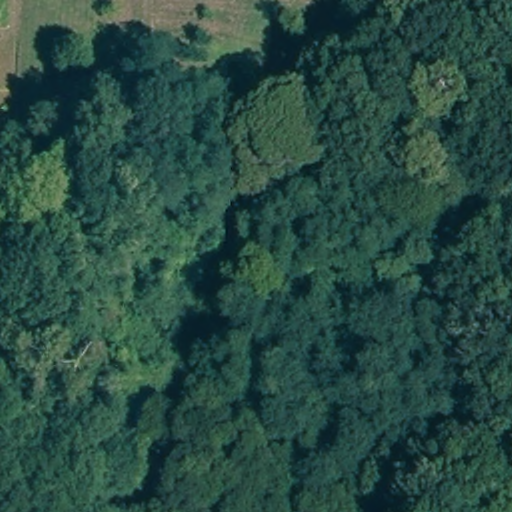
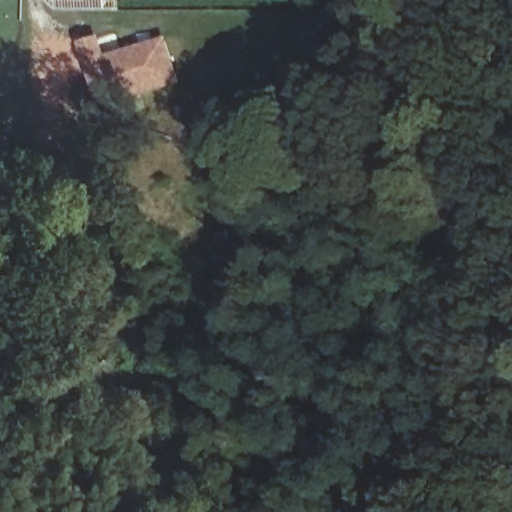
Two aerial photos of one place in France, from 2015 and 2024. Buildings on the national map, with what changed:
new [(78,42),(100,36),(106,56),(166,37),(179,83),(98,109),(78,42)]

